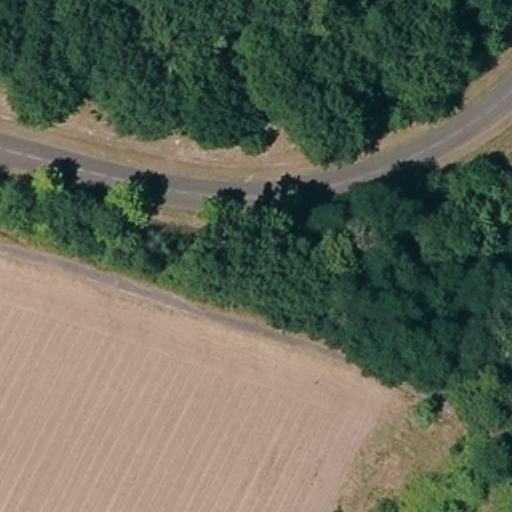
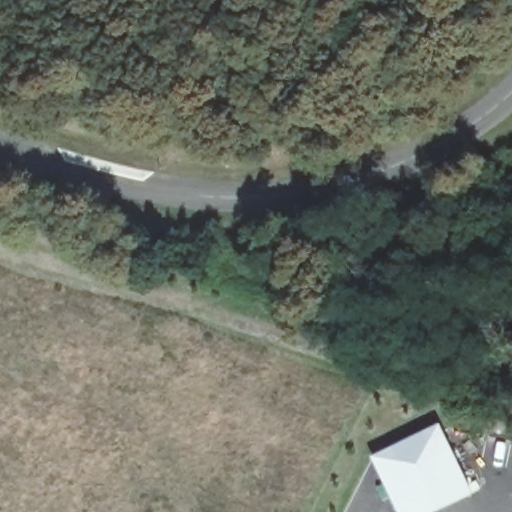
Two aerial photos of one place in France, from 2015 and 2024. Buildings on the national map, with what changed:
new [(474,493),(436,512),(396,512),(370,455),(439,421),(474,493)]

